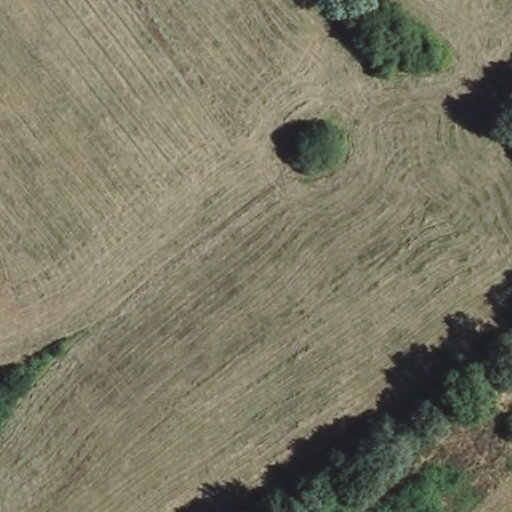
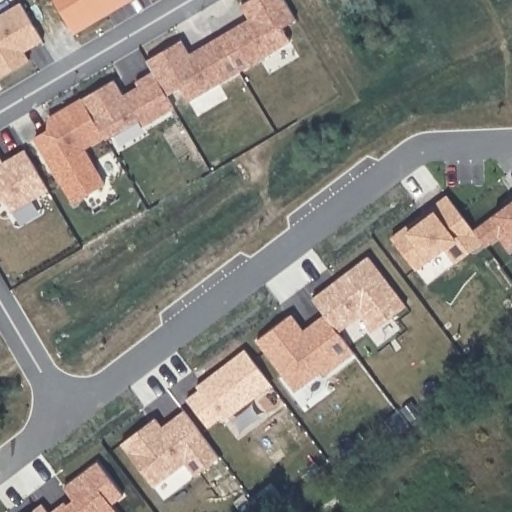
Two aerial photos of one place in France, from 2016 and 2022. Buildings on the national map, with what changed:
new [(48,131),(48,118),(114,82),(123,96),(137,86),(135,82),(153,72),(147,61),(181,41),(189,54),(249,21),(241,5),(250,0),(282,0),(295,20),(282,28),(290,43),(189,101),(181,87),(166,95),(173,109),(144,126),(140,120),(105,142),(102,138),(86,149),(105,183),(74,204),(34,138),(48,131)]
new [(73,34),(55,0),(131,0),(73,34)]
new [(43,41),(23,52),(28,61),(0,78),(0,15),(20,3),(43,41)]
new [(2,162),(24,150),(49,189),(11,211),(6,202),(0,202),(0,159),(2,162)]
new [(498,238),(455,264),(444,249),(427,261),(415,272),(391,238),(446,196),(473,230),(494,216),(512,202),(512,249),(508,252),(498,238)]
new [(405,307),(371,333),(360,318),(338,333),(352,352),(323,374),(321,372),(295,392),(257,340),(291,315),(303,330),(323,314),(312,298),(368,257),(405,307)]
new [(219,459),(195,476),(186,463),(152,487),(122,444),(156,418),(162,426),(183,412),(219,459)]
new [(111,505),(116,512),(50,512),(63,502),(64,506),(73,500),(63,487),(97,462),(122,497),(111,505)]
new [(46,512),(29,512),(40,504),(46,512)]

